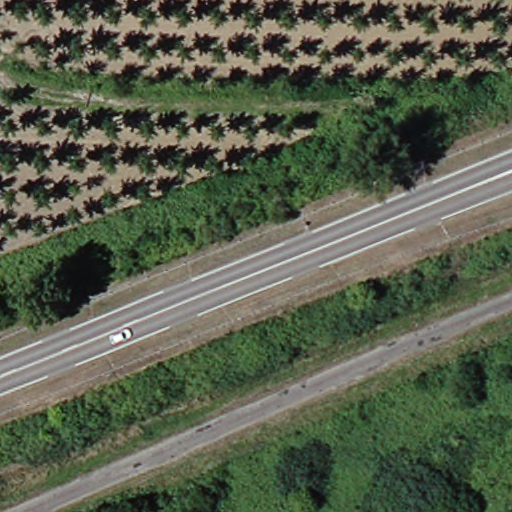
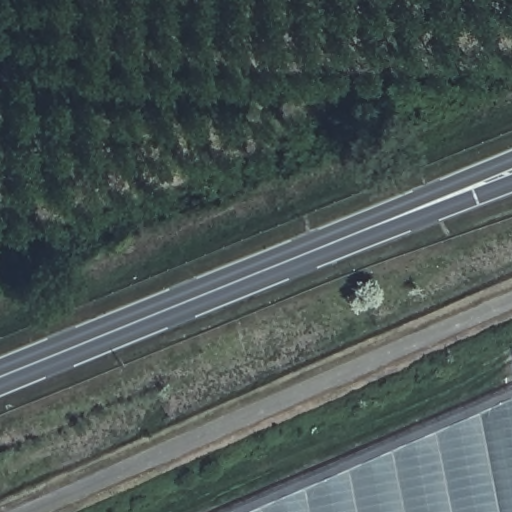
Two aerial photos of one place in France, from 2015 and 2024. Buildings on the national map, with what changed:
new [(252,512),(512,401),(512,512),(252,512)]

